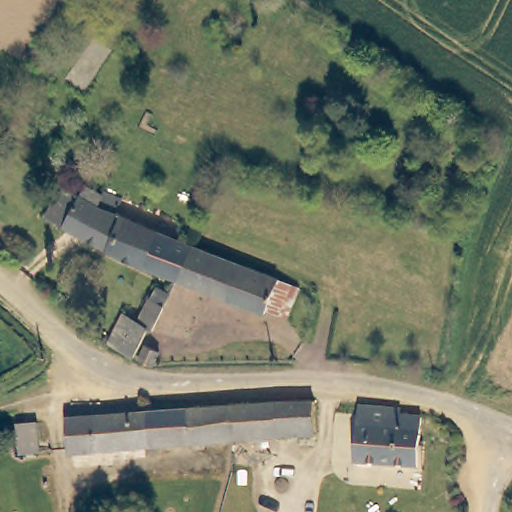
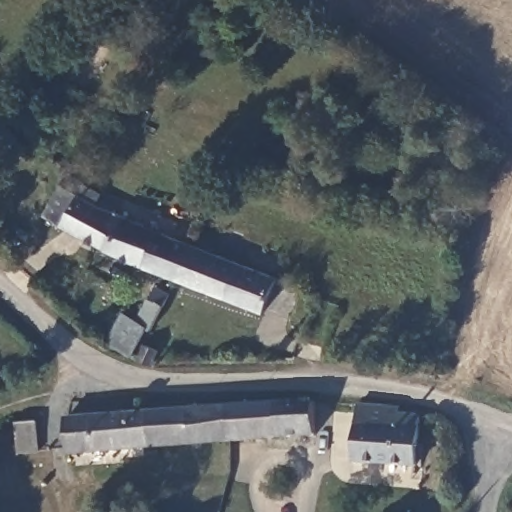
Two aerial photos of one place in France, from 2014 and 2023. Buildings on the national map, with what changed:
unchanged [(192,246),(176,280),(112,253),(79,235),(46,215),(62,187),(81,195),(86,185),(102,194),(104,191),(120,200),(114,213),(139,225),(192,246)]
unchanged [(279,277),(277,282),(266,310),(263,315),(176,280),(192,246),(279,277)]
unchanged [(157,364),(149,364),(135,358),(105,343),(119,315),(133,321),(150,290),(164,296),(146,333),(165,343),(157,364)]
unchanged [(313,400),(316,437),(231,443),(228,407),(313,400)]
unchanged [(399,411),(399,415),(420,416),(417,468),(355,463),(359,405),(399,411)]
unchanged [(231,443),(68,456),(66,420),(228,407),(231,443)]
unchanged [(34,424),(35,452),(16,453),(15,424),(34,424)]

